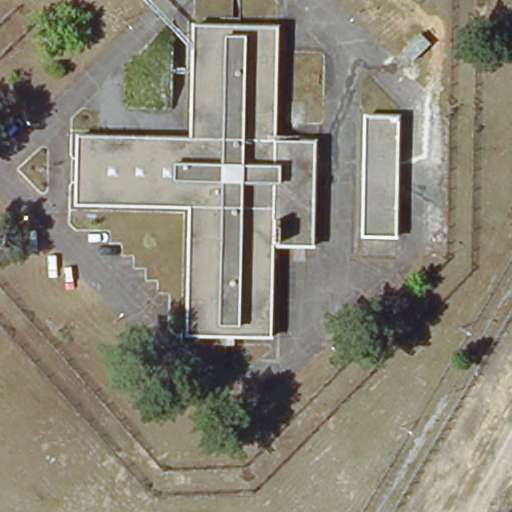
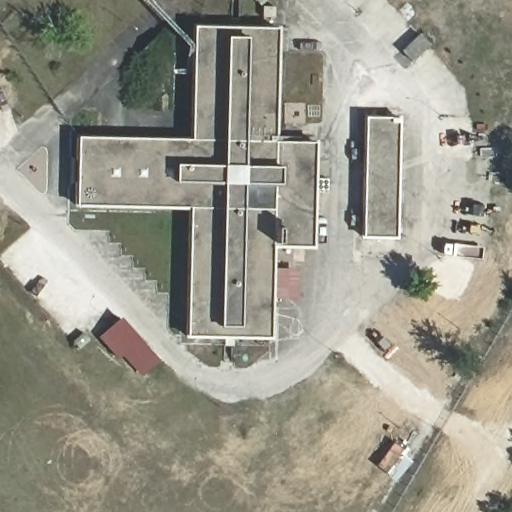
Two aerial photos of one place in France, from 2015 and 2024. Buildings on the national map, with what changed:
unchanged [(194,140),(197,26),(278,29),(276,144),(318,144),(314,250),(274,251),(271,341),(187,340),(192,212),(76,209),(79,139),(194,140)]
unchanged [(401,120),(397,240),(364,239),(366,120),(401,120)]
new [(141,374),(123,355),(119,359),(99,337),(121,317),(164,363),(141,374)]

